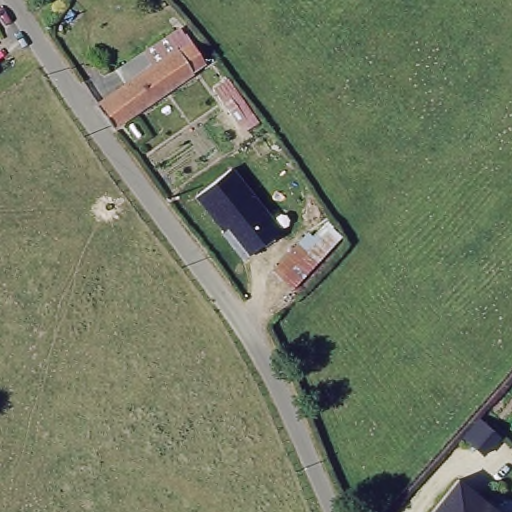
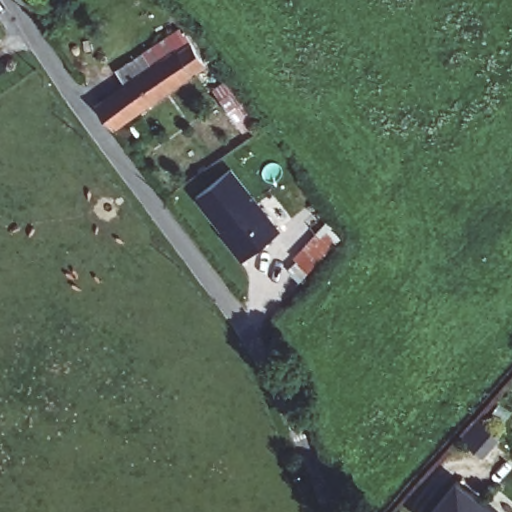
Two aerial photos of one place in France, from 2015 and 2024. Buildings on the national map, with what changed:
unchanged [(116,65),(146,46),(180,22),(191,35),(206,59),(198,64),(143,101),(111,124),(94,102),(128,81),(116,65)]
unchanged [(224,75),(254,117),(239,126),(211,85),(224,75)]
unchanged [(196,197),(234,168),(279,231),(248,255),(241,260),(220,234),(222,232),(196,197)]
unchanged [(311,231),(319,222),(329,231),(284,283),(274,273),(311,231)]
unchanged [(431,512),(459,477),(503,512),(431,512)]

